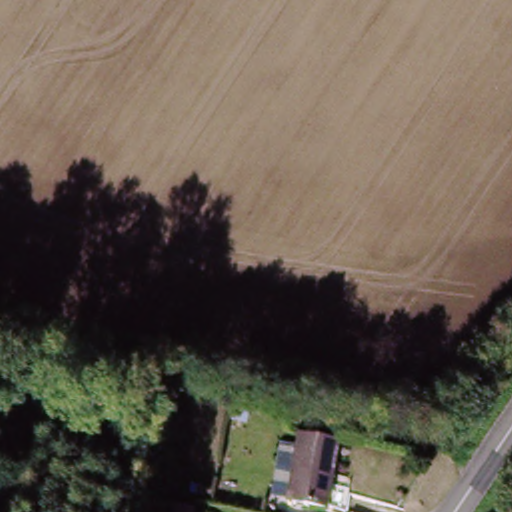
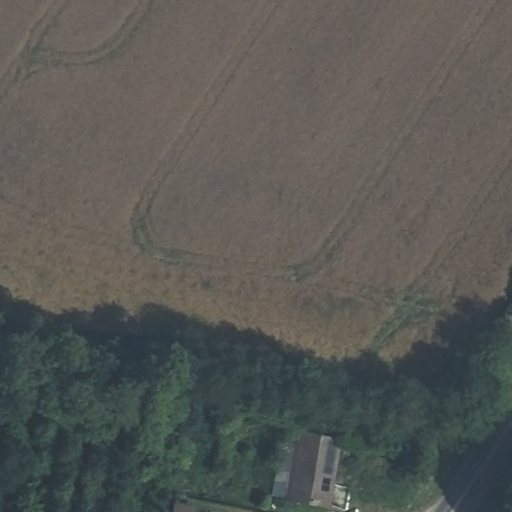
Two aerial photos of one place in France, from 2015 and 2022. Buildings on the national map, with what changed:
unchanged [(300,431),(337,439),(323,503),(287,495),(300,431)]

